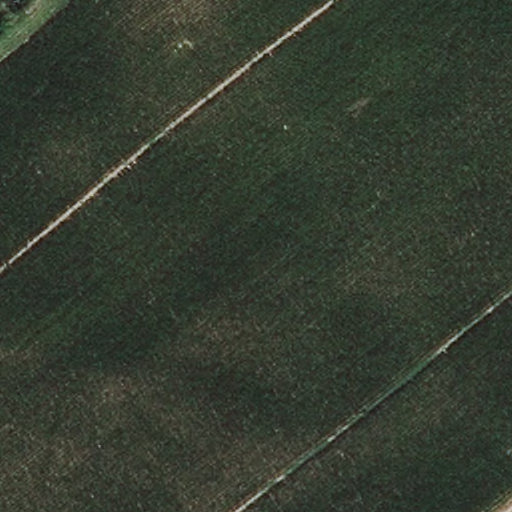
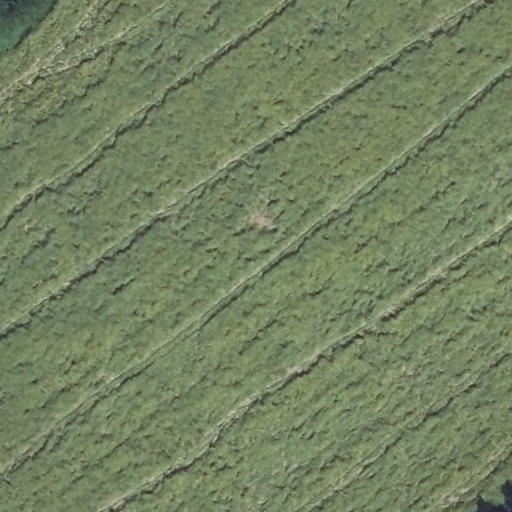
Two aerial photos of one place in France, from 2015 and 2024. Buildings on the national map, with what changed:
[]

